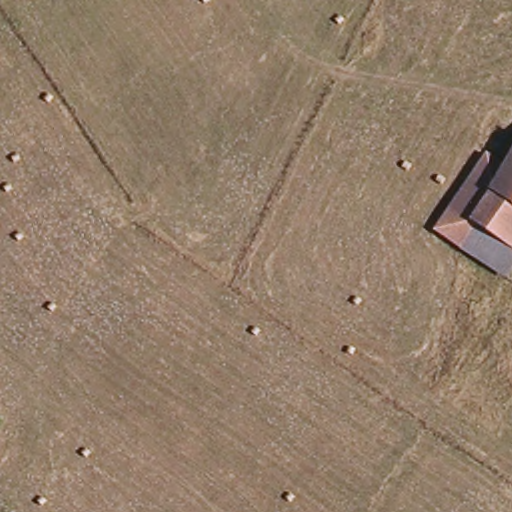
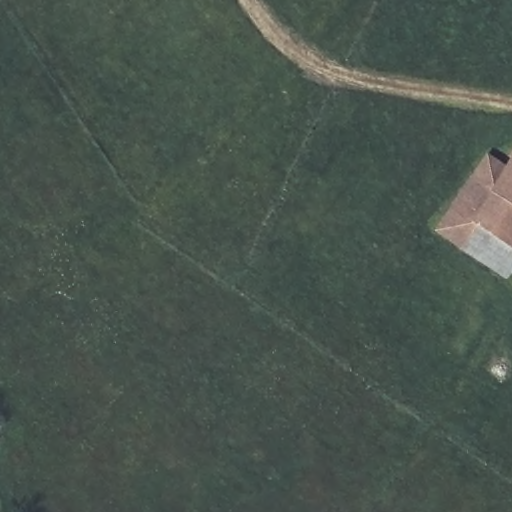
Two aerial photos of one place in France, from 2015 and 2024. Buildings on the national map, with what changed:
unchanged [(440,228),(489,154),(509,166),(512,161),(512,254),(502,269),(440,228)]

